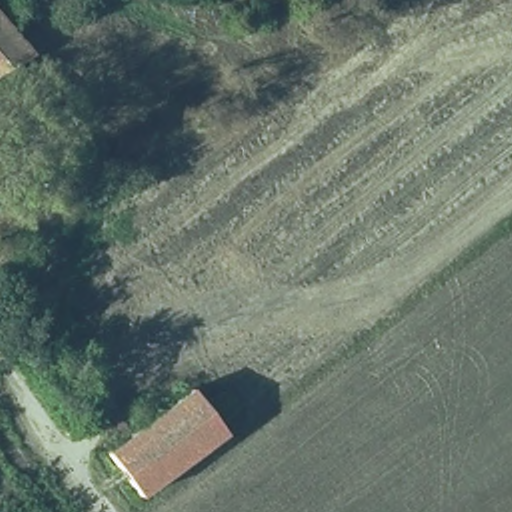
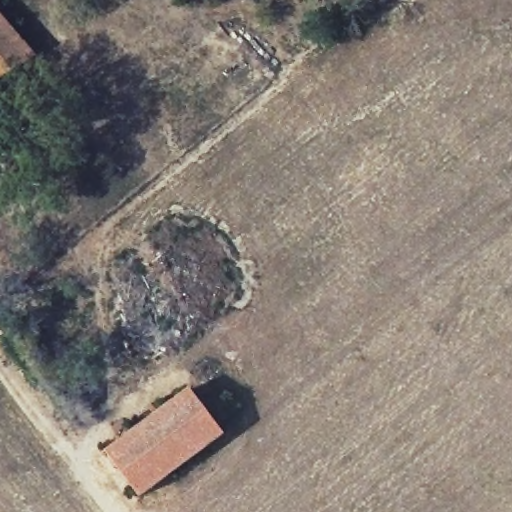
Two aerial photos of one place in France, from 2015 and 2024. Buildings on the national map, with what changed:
unchanged [(32,55),(0,74),(0,18),(32,55)]
unchanged [(192,387),(226,432),(142,495),(107,449),(192,387)]

